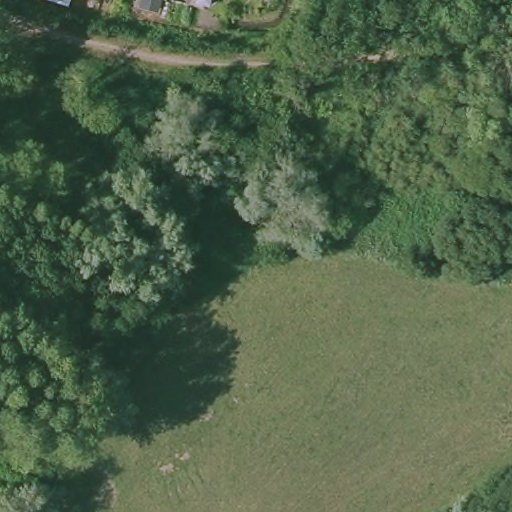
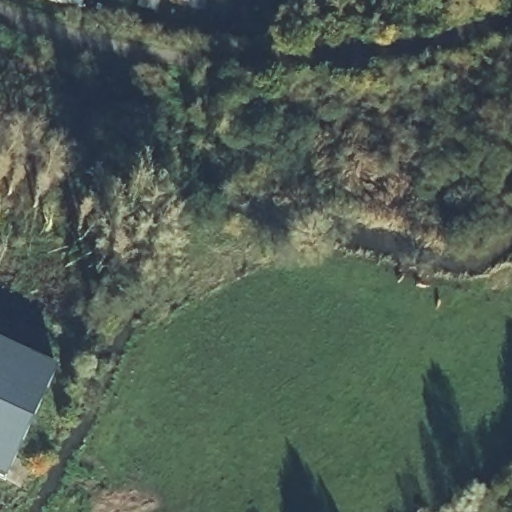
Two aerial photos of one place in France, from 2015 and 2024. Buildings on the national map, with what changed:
unchanged [(64,9),(49,8),(48,8),(28,0),(69,0),(66,10),(64,9)]
new [(4,480),(0,478),(0,347),(53,371),(4,480)]

